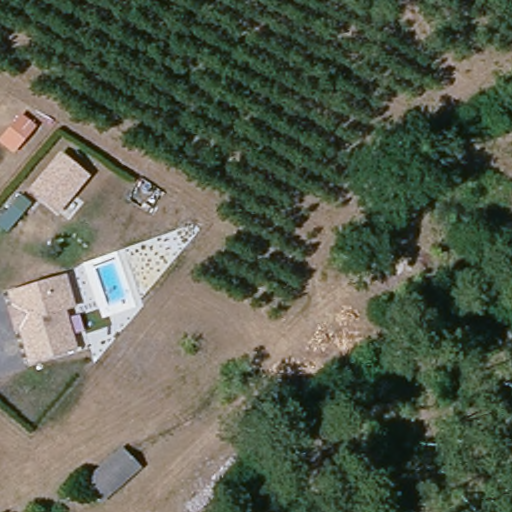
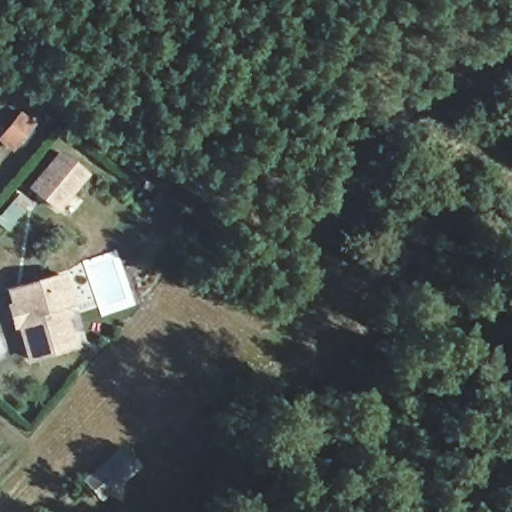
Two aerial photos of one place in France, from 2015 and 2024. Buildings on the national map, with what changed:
unchanged [(57,153),(81,174),(52,208),(27,186),(57,153)]
unchanged [(27,359),(9,290),(62,276),(67,296),(69,305),(60,307),(70,348),(27,359)]
unchanged [(104,501),(85,481),(118,450),(137,468),(104,501)]

